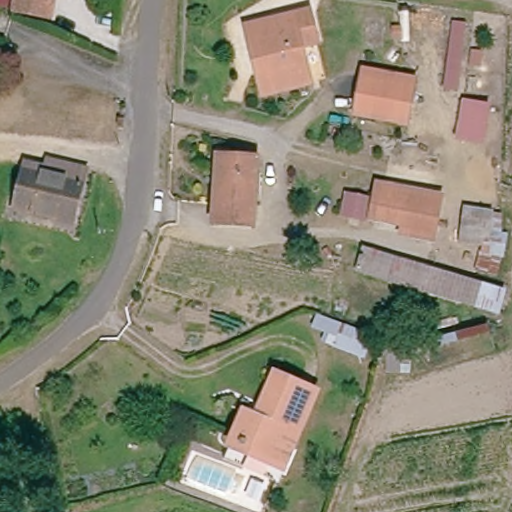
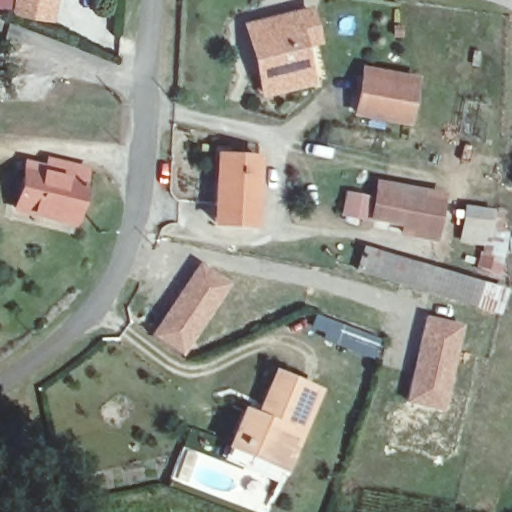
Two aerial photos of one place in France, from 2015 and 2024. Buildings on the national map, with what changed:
unchanged [(54,16),(6,6),(0,4),(0,0),(57,0),(54,16)]
unchanged [(316,39),(304,42),(314,82),(262,95),(256,72),(244,22),(272,15),(308,7),(316,39)]
unchanged [(446,88),(447,62),(435,62),(437,32),(450,32),(452,16),(472,20),(469,90),(446,88)]
unchanged [(353,111),(361,75),(363,68),(414,79),(412,86),(405,122),(353,111)]
unchanged [(491,112),(482,147),(458,141),(467,106),(491,112)]
unchanged [(223,155),(262,160),(254,224),(216,219),(223,155)]
unchanged [(18,211),(31,162),(47,166),(49,159),(70,164),(71,162),(90,167),(86,181),(76,222),(18,211)]
unchanged [(446,196),(438,239),(408,233),(409,224),(381,219),(387,184),(446,196)]
unchanged [(376,199),(372,217),(348,212),(352,194),(376,199)]
unchanged [(470,201),(496,208),(489,236),(462,230),(470,201)]
unchanged [(377,274),(383,254),(430,270),(490,288),(483,308),(391,279),(377,274)]
new [(200,261),(232,284),(181,356),(150,334),(200,261)]
unchanged [(337,336),(312,328),(319,311),(381,336),(371,362),(334,349),(337,336)]
new [(425,315),(463,324),(440,412),(405,402),(425,315)]
unchanged [(232,443),(240,422),(244,412),(256,417),(273,376),(318,392),(299,443),(288,474),(253,461),(228,452),(232,443)]

